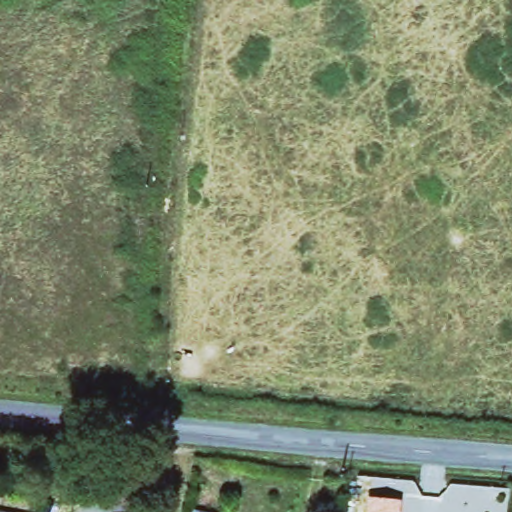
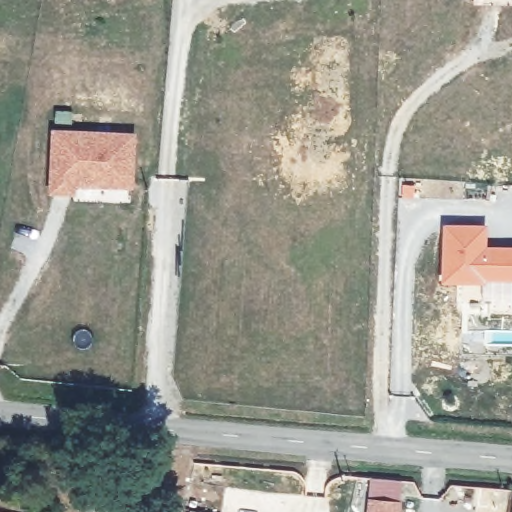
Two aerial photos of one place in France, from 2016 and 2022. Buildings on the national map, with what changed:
new [(137,134),(134,187),(77,186),(76,195),(49,194),(44,162),(52,130),(137,134)]
new [(488,245),(512,245),(512,280),(484,280),(483,283),(440,282),(442,223),(487,225),(488,245)]
unchanged [(401,503),(399,512),(364,512),(366,499),(401,503)]
demolished [(0,512),(0,511),(7,512),(0,512)]
new [(192,512),(183,512),(184,511),(192,512)]

